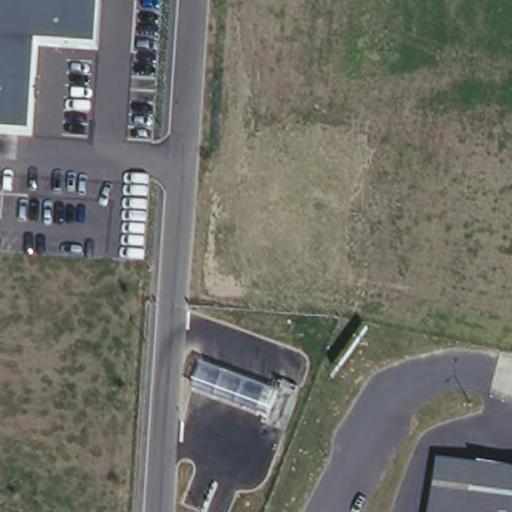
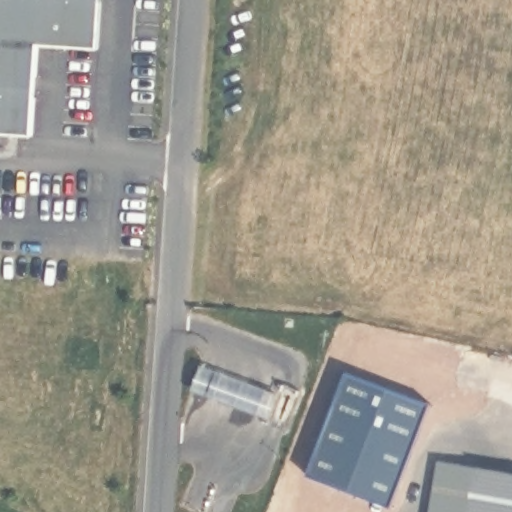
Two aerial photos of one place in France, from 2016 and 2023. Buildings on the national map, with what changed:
unchanged [(95,46),(35,42),(30,132),(0,130),(0,0),(99,0),(95,46)]
new [(195,378),(203,359),(266,383),(267,381),(278,385),(269,408),(258,404),(259,402),(195,378)]
new [(426,404),(390,505),(308,473),(347,373),(426,404)]
unchanged [(475,468),(476,464),(512,472),(512,512),(428,512),(436,460),(475,468)]

